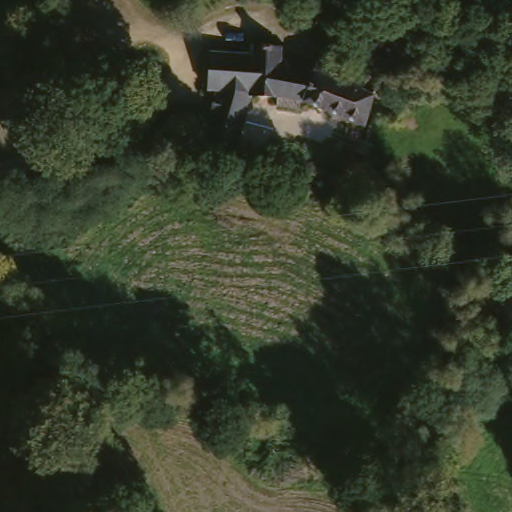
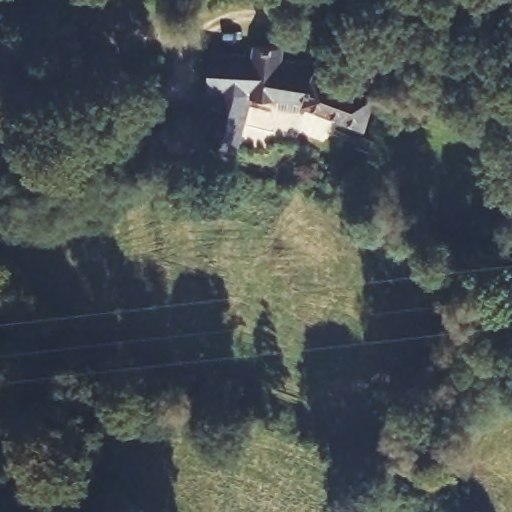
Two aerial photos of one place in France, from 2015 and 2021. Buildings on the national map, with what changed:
unchanged [(290,107),(271,104),(271,100),(244,96),(225,147),(198,138),(213,91),(201,86),(204,54),(245,57),(247,45),(270,48),(273,59),(306,63),(293,102),(290,107)]
unchanged [(309,54),(358,73),(351,87),(367,94),(354,127),(293,102),(306,63),(309,54)]

